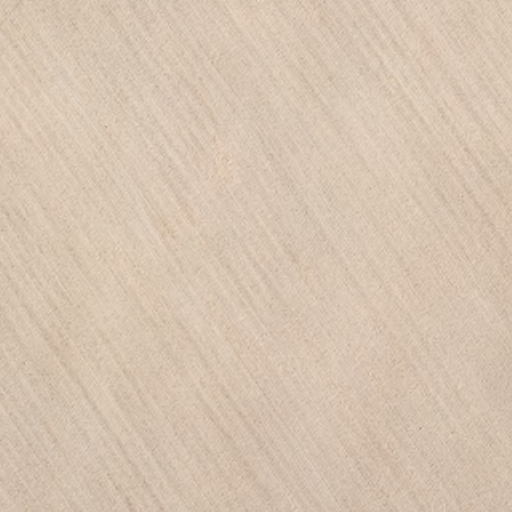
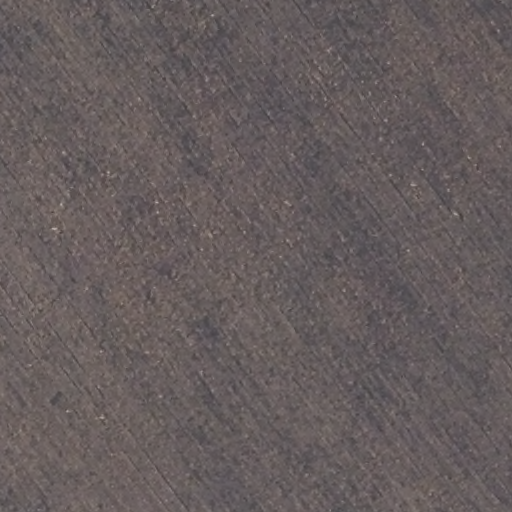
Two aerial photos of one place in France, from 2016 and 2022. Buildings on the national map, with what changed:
[]

